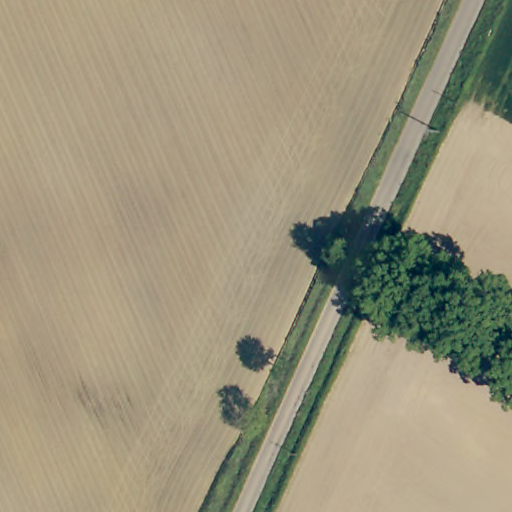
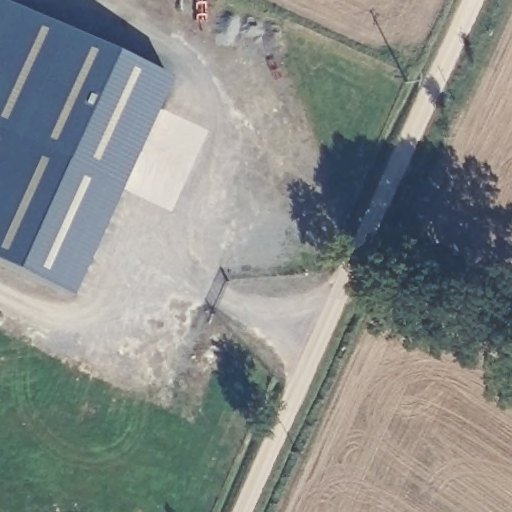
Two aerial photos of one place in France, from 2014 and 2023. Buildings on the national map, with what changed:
new [(70,294),(0,262),(0,0),(171,77),(70,294)]

